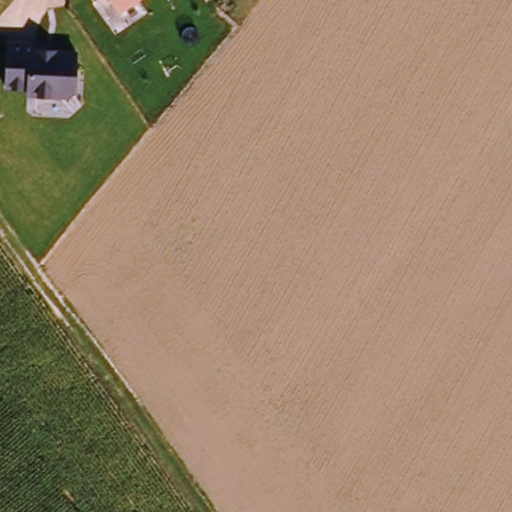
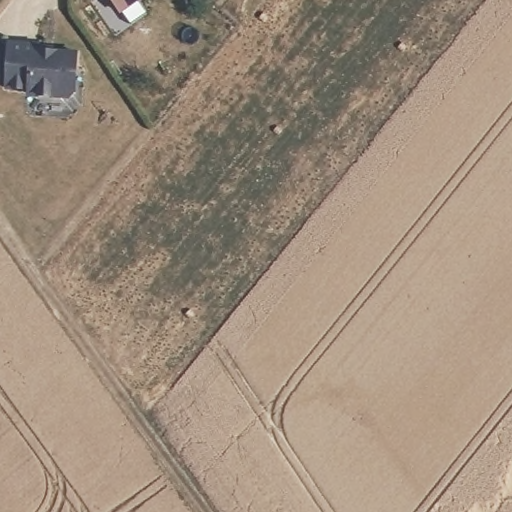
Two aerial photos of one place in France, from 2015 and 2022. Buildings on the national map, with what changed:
unchanged [(113,15),(103,0),(137,0),(113,15)]
unchanged [(78,96),(72,101),(36,99),(32,94),(33,92),(10,92),(12,47),(43,48),(43,57),(55,57),(57,55),(81,56),(78,96)]

